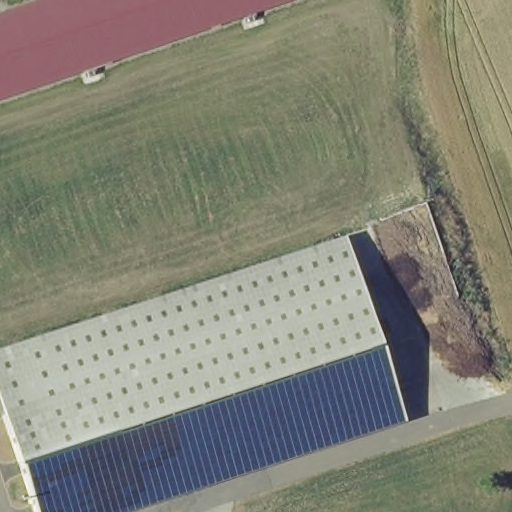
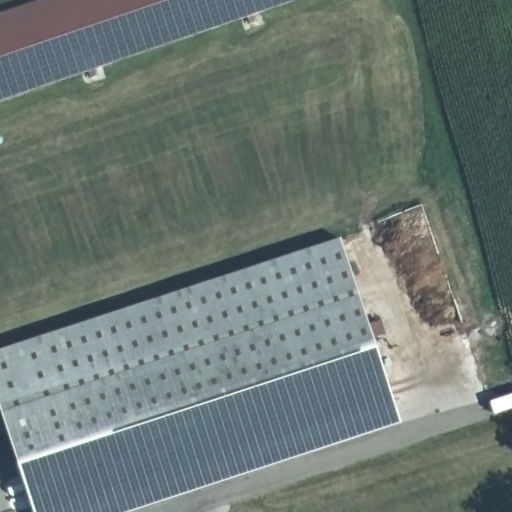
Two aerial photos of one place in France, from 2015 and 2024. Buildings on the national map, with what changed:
unchanged [(0,100),(0,14),(41,0),(294,0),(0,100)]
unchanged [(345,243),(397,405),(92,505),(95,512),(37,512),(0,399),(0,357),(6,354),(345,243)]

